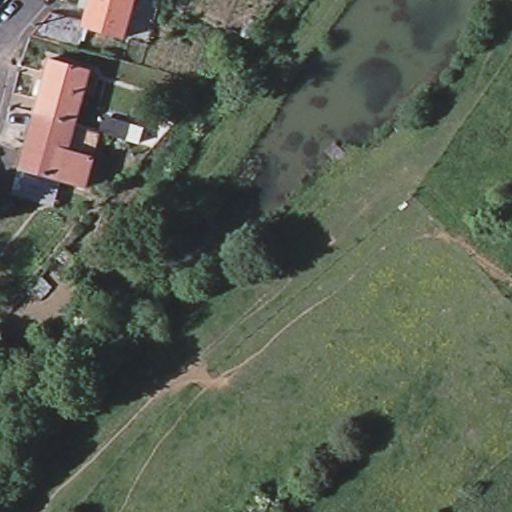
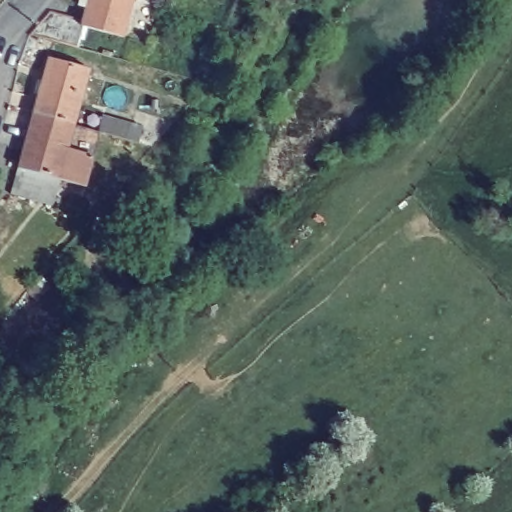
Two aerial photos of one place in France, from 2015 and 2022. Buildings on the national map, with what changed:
unchanged [(79,20),(85,0),(128,0),(120,31),(79,20)]
unchanged [(70,120),(30,108),(45,54),(85,65),(70,120)]
unchanged [(55,175),(15,164),(30,108),(70,120),(55,175)]
unchanged [(124,134),(123,134),(96,126),(100,112),(128,120),(124,134)]
unchanged [(96,126),(80,182),(55,175),(70,120),(96,126)]
unchanged [(58,177),(50,205),(8,191),(14,165),(58,177)]

